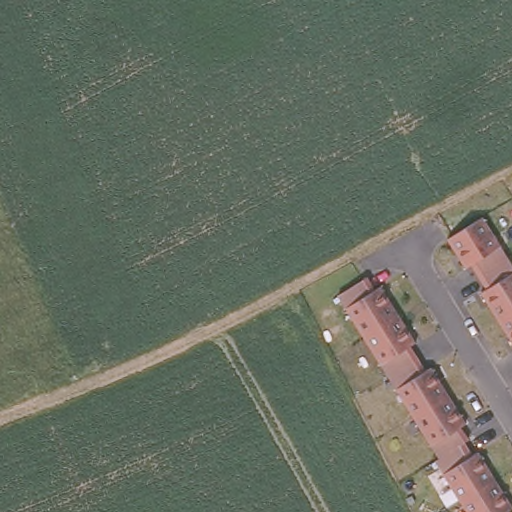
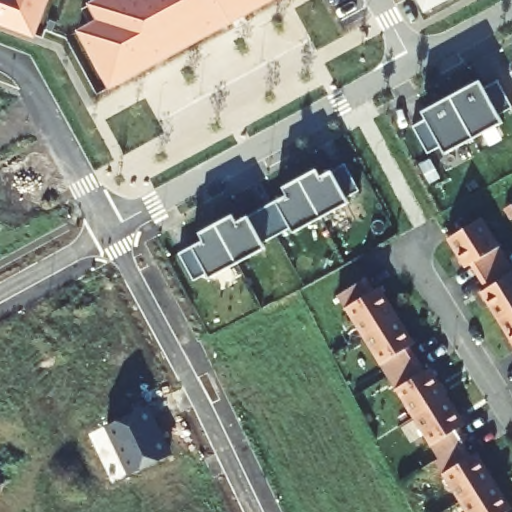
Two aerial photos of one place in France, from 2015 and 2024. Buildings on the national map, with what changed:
new [(0,26),(0,0),(49,0),(34,38),(0,26)]
new [(78,30),(98,19),(89,3),(95,0),(276,0),(110,90),(78,30)]
new [(444,0),(444,1),(426,11),(420,0),(444,0)]
new [(512,72),(512,75),(511,73),(512,72)]
new [(467,87),(471,95),(483,89),(502,123),(473,139),(450,97),(467,87)]
new [(473,139),(444,154),(426,120),(438,113),(433,106),(450,97),(473,139)]
new [(311,160),(316,169),(326,163),(330,171),(344,164),(360,196),(348,202),(355,214),(326,230),(294,169),(311,160)]
new [(261,210),(278,201),(273,192),(283,187),(277,179),(294,169),(326,230),(299,245),(293,234),(279,242),(261,210)]
new [(279,242),(266,249),(272,261),(243,276),(210,216),(227,207),(231,215),(240,211),(244,219),(261,210),(279,242)]
new [(179,256),(196,246),(191,239),(199,234),(194,226),(211,216),(241,273),(214,288),(210,280),(197,287),(179,256)]
unchanged [(512,272),(512,346),(496,320),(479,293),(486,288),(477,275),(469,265),(463,268),(445,240),(449,237),(479,219),(504,258),(512,272)]
unchanged [(383,291),(402,320),(419,348),(414,352),(422,363),(430,377),(436,373),(452,400),(470,428),(464,432),(473,444),(467,447),(476,459),(481,456),(499,485),(512,505),(512,512),(469,512),(465,506),(439,466),(443,463),(417,422),(392,382),(366,342),(341,301),(364,285),(369,282),(376,295),(383,291)]
new [(173,454),(129,477),(105,425),(149,405),(173,454)]

